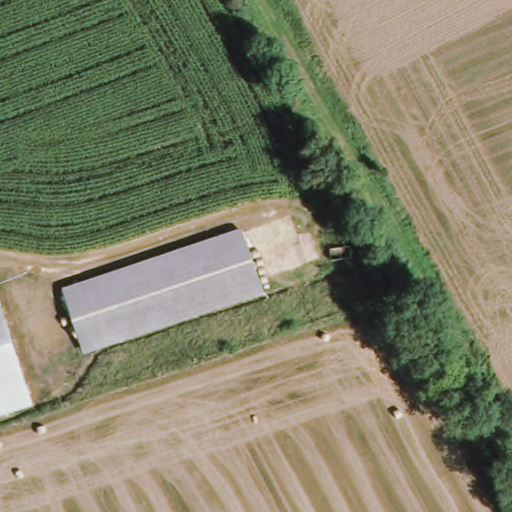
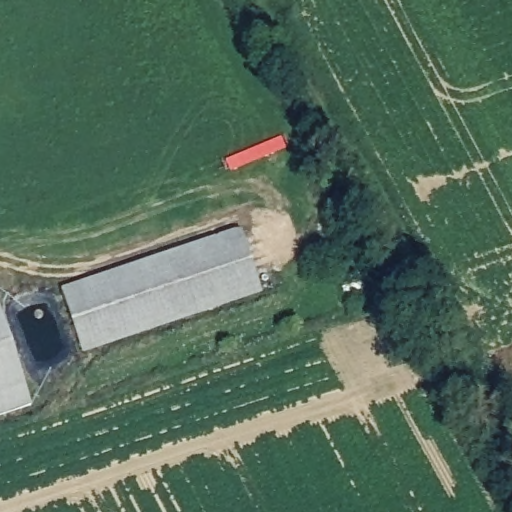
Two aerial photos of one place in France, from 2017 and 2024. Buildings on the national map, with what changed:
unchanged [(239,236),(262,300),(94,352),(73,295),(239,236)]
unchanged [(32,407),(0,417),(0,308),(32,407)]

